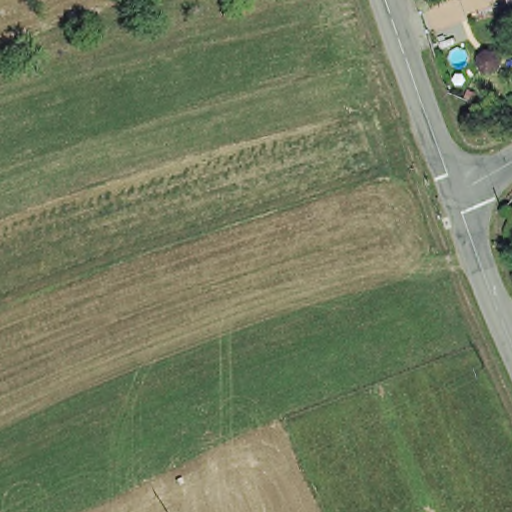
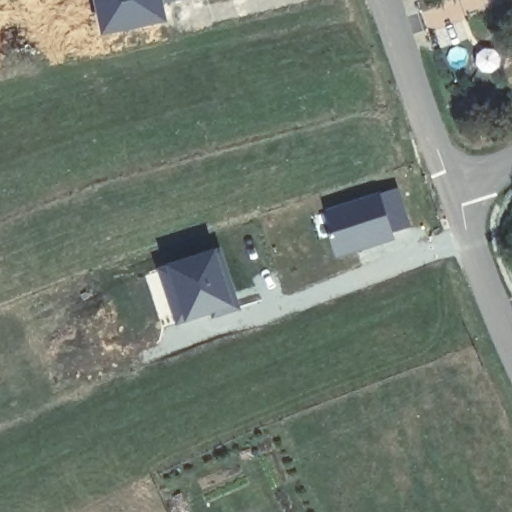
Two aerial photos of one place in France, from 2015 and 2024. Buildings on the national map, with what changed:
new [(109,35),(101,0),(161,0),(164,22),(109,35)]
new [(394,237),(339,254),(327,214),(381,196),(394,237)]
new [(221,246),(240,308),(174,325),(154,267),(221,246)]

